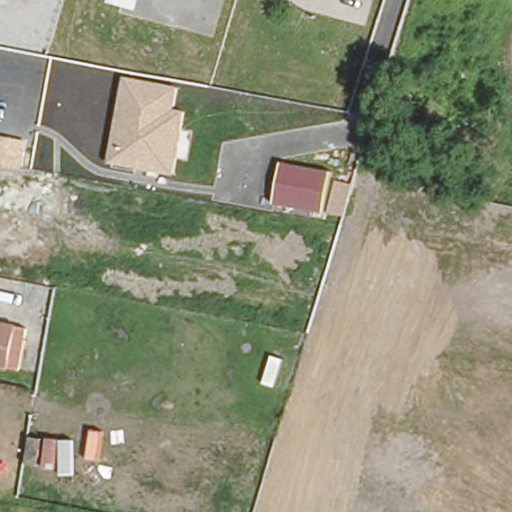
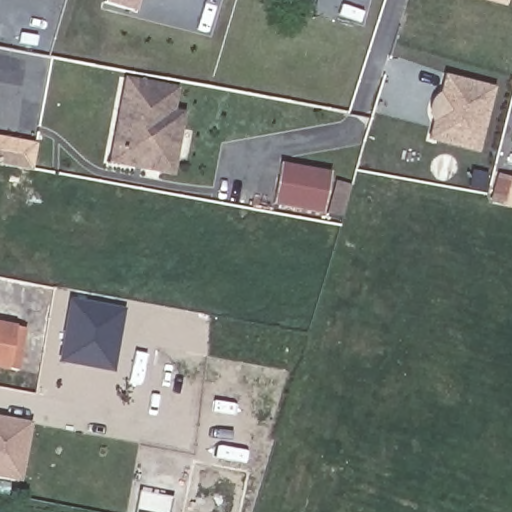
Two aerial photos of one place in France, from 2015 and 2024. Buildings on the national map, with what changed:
new [(107,0),(139,0),(135,13),(106,3),(107,0)]
new [(503,10),(471,0),(506,0),(503,10)]
new [(478,153),(428,140),(433,121),(429,113),(433,99),(439,93),(444,75),(494,86),(478,153)]
unchanged [(176,109),(171,135),(143,132),(142,139),(124,137),(133,85),(179,94),(176,109)]
unchanged [(186,113),(172,173),(118,164),(124,137),(142,139),(143,132),(171,135),(176,109),(186,113)]
unchanged [(4,165),(0,165),(0,135),(9,136),(4,165)]
unchanged [(332,179),(324,217),(275,207),(283,169),(332,179)]
new [(68,297),(126,307),(115,372),(57,362),(68,297)]
unchanged [(0,373),(0,329),(29,334),(28,342),(12,339),(6,374),(0,373)]
new [(21,482),(0,478),(0,416),(32,421),(21,482)]

